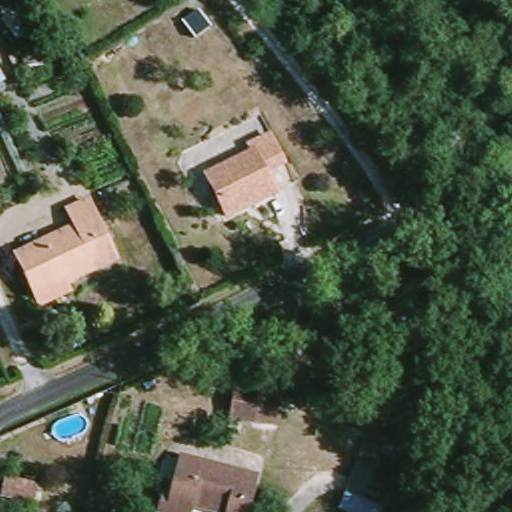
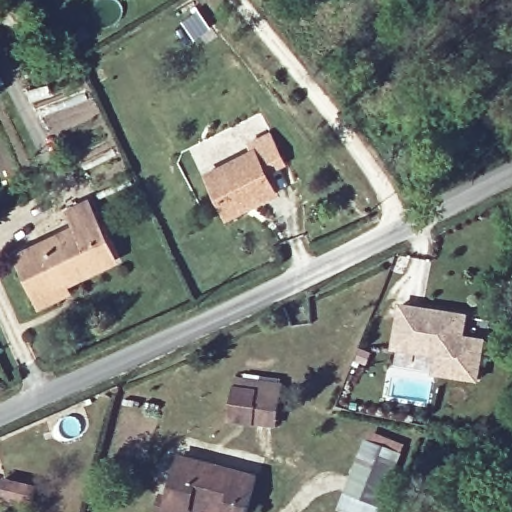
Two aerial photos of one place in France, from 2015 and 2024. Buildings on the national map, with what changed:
new [(0,81),(0,73),(4,79),(0,81)]
unchanged [(232,217),(213,175),(257,155),(252,147),(273,138),(288,169),(270,177),(276,189),(280,197),(250,209),(232,217)]
unchanged [(39,299),(19,256),(79,228),(70,211),(89,203),(116,263),(65,287),(70,294),(43,307),(39,299)]
new [(403,303),(469,314),(465,335),(486,338),(480,378),(437,371),(440,353),(396,346),(403,303)]
demolished [(372,321),(373,310),(401,315),(391,323),(372,321)]
unchanged [(256,413),(235,407),(240,388),(288,400),(281,436),(254,429),(256,413)]
unchanged [(407,451),(384,512),(343,512),(342,512),(371,436),(407,451)]
unchanged [(215,512),(197,505),(195,512),(171,512),(162,509),(170,492),(176,495),(192,456),(265,485),(254,512),(215,512)]
unchanged [(10,495),(15,478),(41,485),(35,502),(10,495)]

